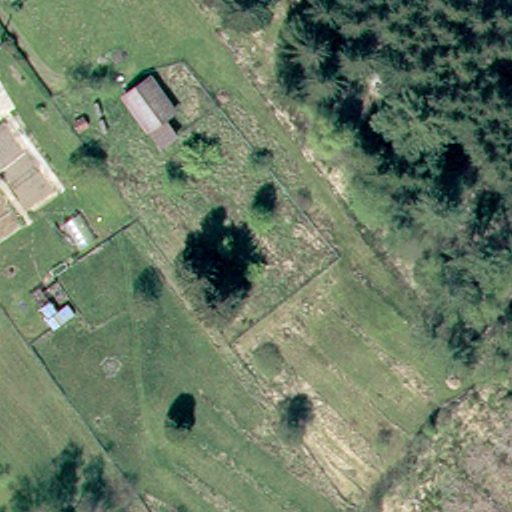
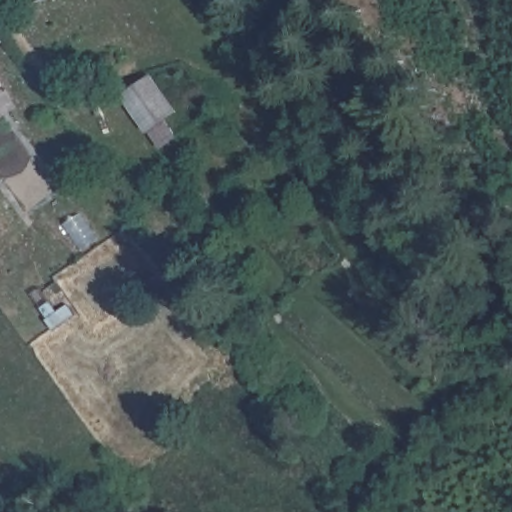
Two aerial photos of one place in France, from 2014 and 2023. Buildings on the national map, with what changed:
unchanged [(173,113),(164,120),(177,138),(161,149),(126,97),(150,80),(173,113)]

